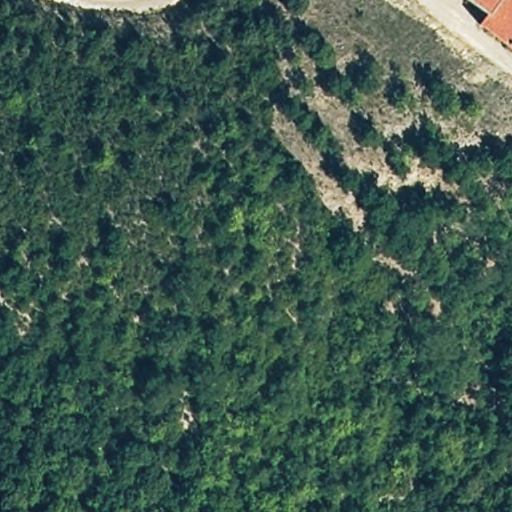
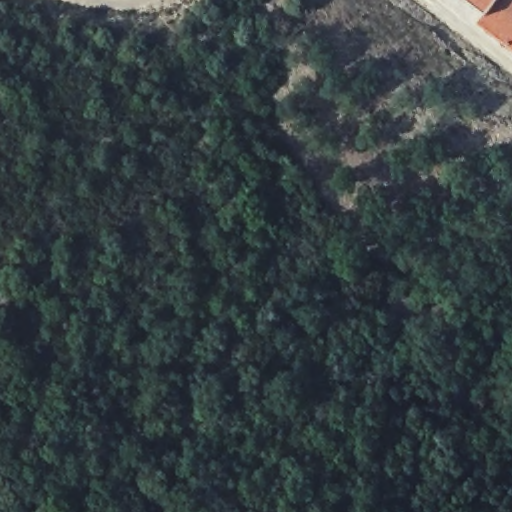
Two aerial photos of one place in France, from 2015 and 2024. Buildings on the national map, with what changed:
unchanged [(463,0),(512,0),(512,55),(475,25),(482,16),(463,0)]

